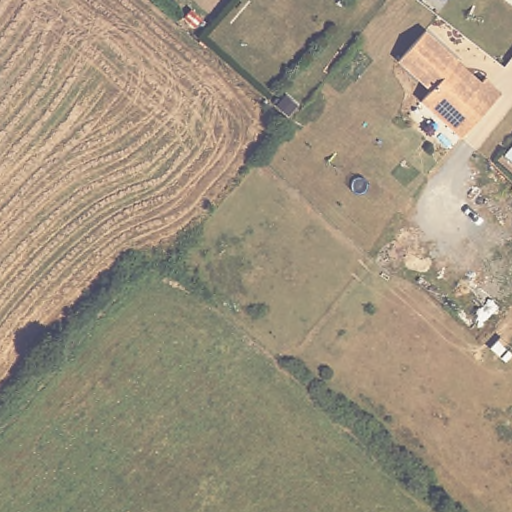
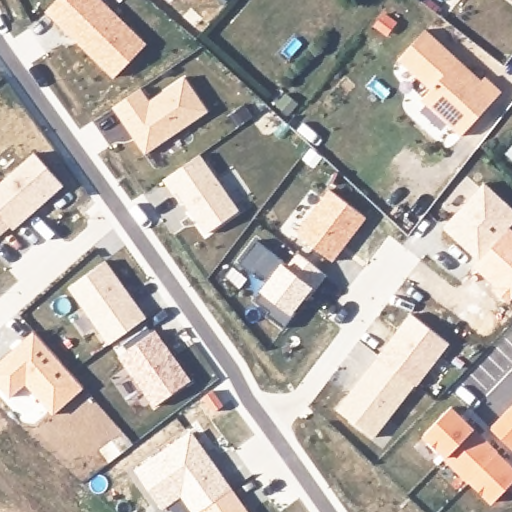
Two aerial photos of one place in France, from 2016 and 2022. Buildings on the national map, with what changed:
new [(57,0),(104,0),(147,42),(113,78),(45,13),(57,0)]
unchanged [(506,95),(464,139),(424,101),(434,90),(401,60),(430,31),(463,62),(486,84),(489,80),(506,95)]
new [(140,87),(149,100),(185,75),(208,112),(145,155),(113,106),(140,87)]
unchanged [(512,131),(512,133),(511,132),(512,131)]
new [(34,152),(63,186),(13,231),(10,227),(0,236),(0,182),(34,152)]
new [(201,154),(239,211),(205,235),(177,193),(173,195),(163,180),(201,154)]
new [(512,207),(512,222),(479,259),(443,226),(483,182),(512,207)]
new [(328,189),(366,216),(331,262),(294,235),(328,189)]
new [(260,290),(267,280),(255,270),(252,273),(238,263),(255,241),(287,265),(297,252),(327,275),(305,305),(302,303),(283,329),(264,315),(267,310),(254,301),(260,290)]
new [(105,259),(147,317),(108,345),(68,288),(105,259)]
new [(409,311),(450,343),(416,387),(414,386),(373,440),(337,411),(409,311)]
new [(32,330),(84,389),(52,416),(26,385),(9,398),(0,388),(0,360),(32,330)]
new [(155,330),(192,380),(154,407),(118,357),(155,330)]
new [(512,448),(489,427),(512,404),(512,448)]
new [(512,464),(512,491),(506,486),(492,503),(469,482),(445,457),(423,435),(453,405),(512,464)]
new [(232,490),(201,512),(191,512),(180,497),(162,510),(133,470),(191,429),(232,490)]

